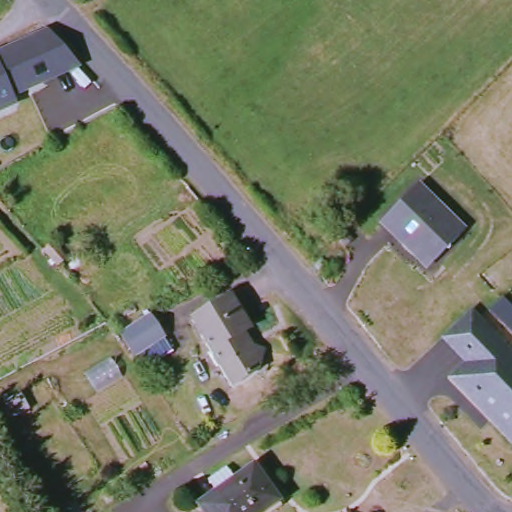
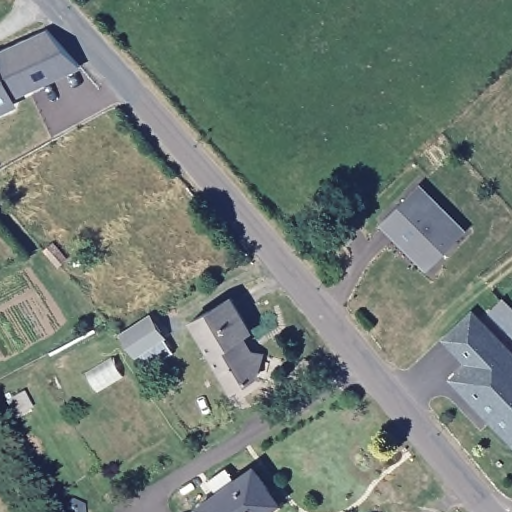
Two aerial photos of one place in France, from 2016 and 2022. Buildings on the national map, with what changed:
unchanged [(12,108),(0,113),(0,54),(49,32),(75,62),(80,68),(43,85),(22,94),(13,98),(14,100),(12,108)]
unchanged [(418,184),(467,229),(427,272),(379,225),(418,184)]
unchanged [(60,268),(53,260),(48,254),(58,247),(63,254),(69,262),(60,268)]
unchanged [(245,332),(254,345),(266,346),(262,370),(235,386),(194,319),(233,295),(254,326),(245,332)]
unchanged [(504,298),(512,306),(512,331),(492,310),(504,298)]
unchanged [(512,347),(512,441),(451,375),(466,362),(442,337),(474,307),(512,347)]
unchanged [(164,340),(173,351),(143,367),(136,355),(123,330),(148,315),(164,340)]
unchanged [(18,415),(9,402),(25,393),(33,406),(18,415)]
unchanged [(256,470),(269,491),(264,494),(271,506),(262,512),(204,512),(199,504),(218,493),(209,480),(228,470),(236,482),(256,470)]

